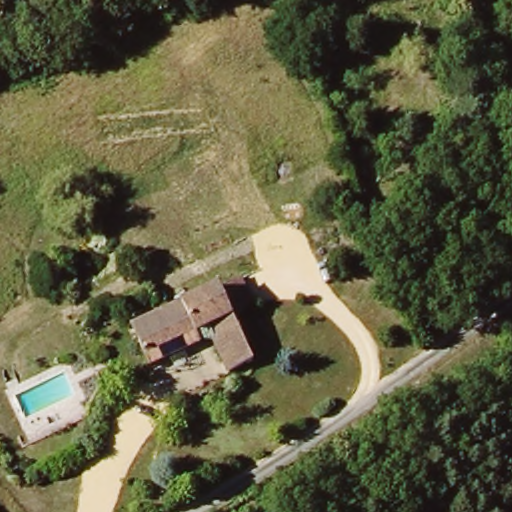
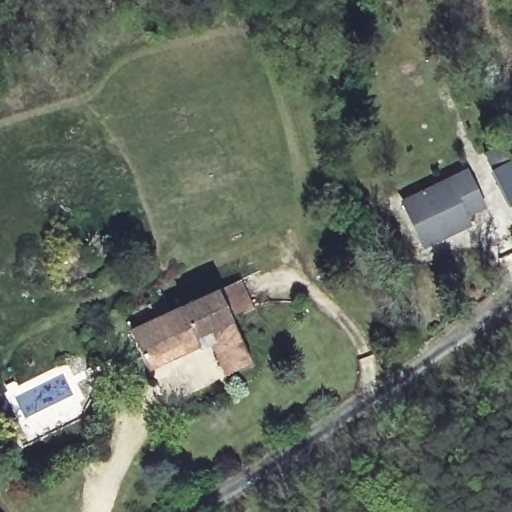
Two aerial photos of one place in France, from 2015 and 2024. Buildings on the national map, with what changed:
new [(490,167),(482,151),(502,141),(510,156),(512,160),(512,199),(507,202),(490,167)]
new [(467,168),(487,209),(470,218),(475,226),(425,251),(400,200),(467,168)]
unchanged [(151,322),(176,306),(226,271),(236,286),(240,292),(222,305),(251,345),(229,361),(214,339),(197,343),(152,373),(137,352),(127,338),(151,322)]

